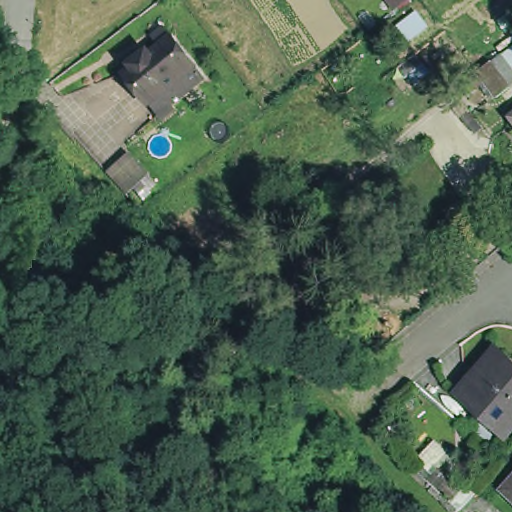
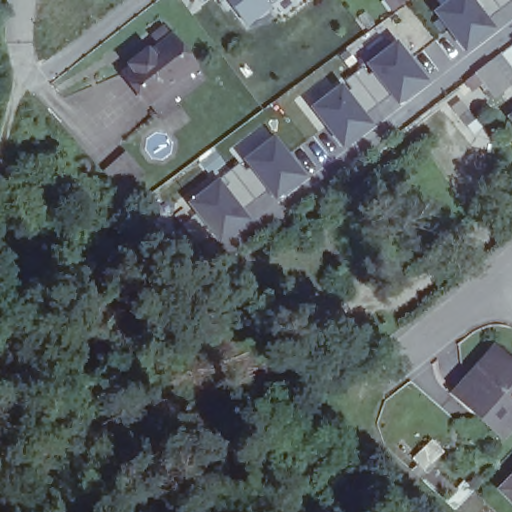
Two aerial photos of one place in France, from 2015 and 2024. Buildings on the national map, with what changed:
new [(232,7),(236,5),(233,0),(279,0),(246,26),(232,7)]
new [(499,27),(465,52),(433,10),(447,0),(510,0),(488,16),(499,27)]
new [(512,3),(510,0),(512,0),(512,3)]
unchanged [(122,65),(120,61),(138,48),(140,50),(154,40),(164,33),(166,36),(188,63),(196,73),(150,110),(141,99),(117,69),(122,65)]
new [(395,40),(429,81),(398,106),(390,94),(364,111),(373,125),(341,149),(308,106),(395,40)]
demolished [(417,54),(424,63),(406,77),(400,67),(417,54)]
unchanged [(512,85),(497,96),(478,72),(492,61),(512,85)]
unchanged [(512,110),(512,121),(507,114),(512,110)]
unchanged [(477,120),(468,127),(461,118),(470,111),(477,120)]
new [(188,209),(185,205),(273,133),(309,179),(275,205),(263,190),(242,208),(252,222),(219,247),(215,240),(200,250),(176,220),(188,209)]
unchanged [(109,172),(130,154),(147,171),(125,191),(109,172)]
unchanged [(512,361),(512,428),(506,435),(465,396),(459,391),(471,378),(498,348),(512,361)]
unchanged [(512,475),(512,498),(500,487),(512,475)]

